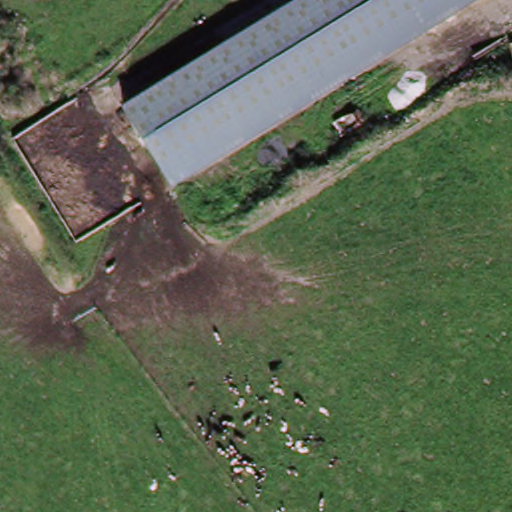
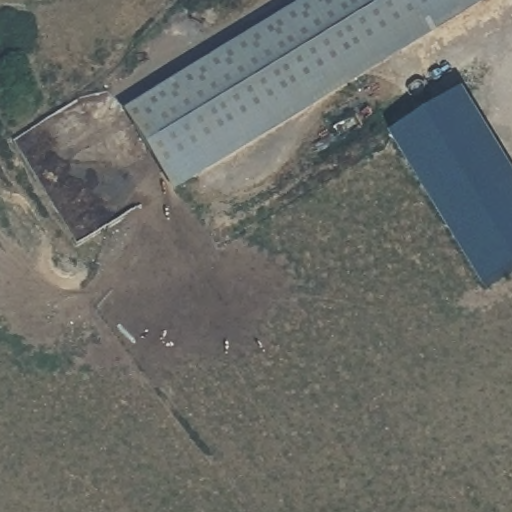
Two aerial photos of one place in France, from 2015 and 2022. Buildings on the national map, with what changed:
unchanged [(171,190),(123,110),(303,0),(483,0),(171,190)]
new [(512,165),(512,272),(489,285),(391,126),(464,88),(512,165)]

